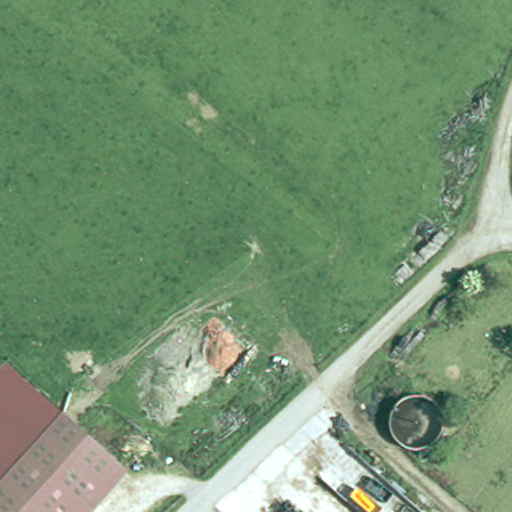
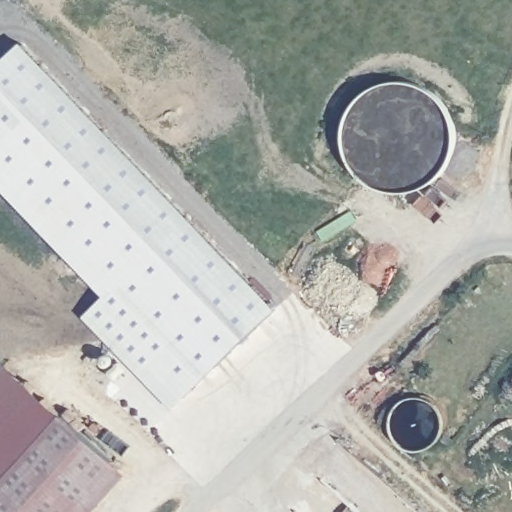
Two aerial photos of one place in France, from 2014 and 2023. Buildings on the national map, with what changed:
new [(275,309),(172,408),(85,317),(110,294),(0,179),(0,67),(24,45),(275,309)]
unchanged [(0,369),(5,364),(67,417),(0,489),(0,369)]
unchanged [(130,472),(94,512),(0,512),(0,489),(67,417),(130,472)]

